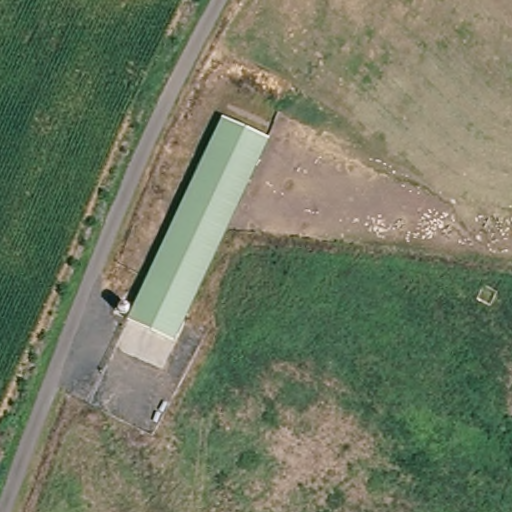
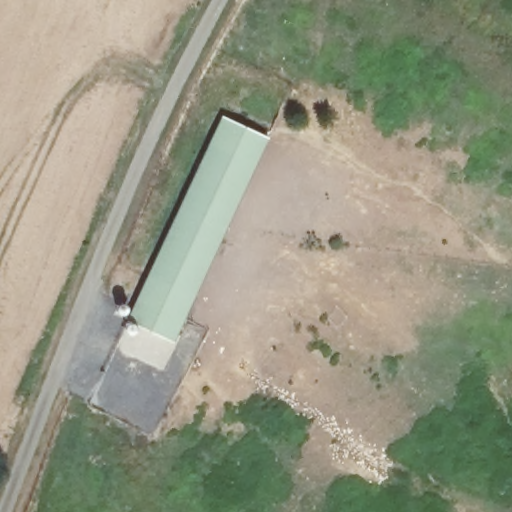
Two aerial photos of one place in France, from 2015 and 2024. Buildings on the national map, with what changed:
unchanged [(171,341),(127,320),(225,117),(268,138),(171,341)]

